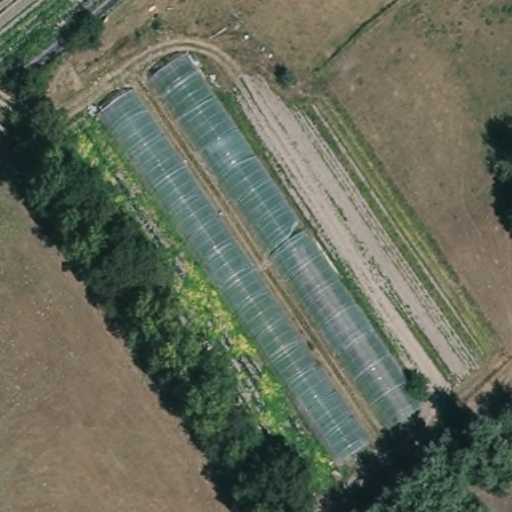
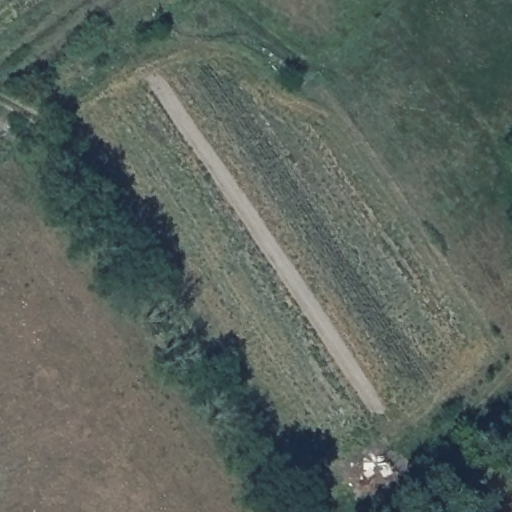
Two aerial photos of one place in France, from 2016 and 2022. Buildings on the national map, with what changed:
demolished [(148,81),(185,56),(424,408),(388,431),(148,81)]
demolished [(94,116),(135,91),(371,446),(338,476),(94,116)]

